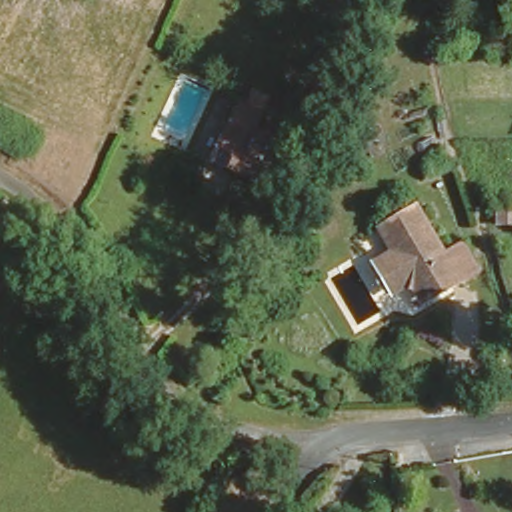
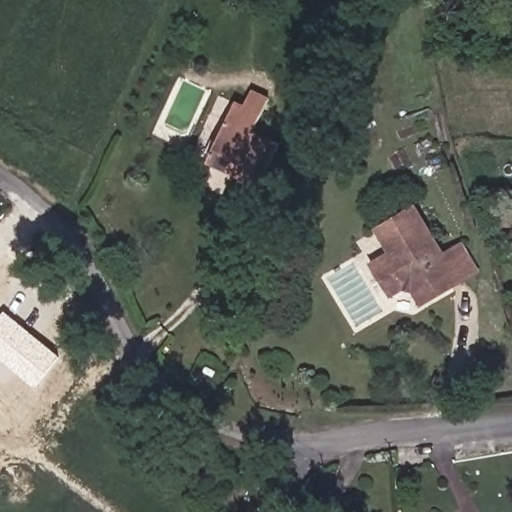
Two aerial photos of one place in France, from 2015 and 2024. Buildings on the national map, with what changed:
unchanged [(275,181),(252,170),(252,172),(204,147),(230,93),(255,105),(250,117),(273,128),(263,149),(285,160),(275,181)]
unchanged [(408,290),(404,283),(390,279),(378,285),(365,259),(388,248),(376,221),(413,203),(436,252),(442,250),(455,279),(427,292),(412,299),(408,290)]
new [(61,356),(38,387),(0,358),(0,318),(5,311),(61,356)]

